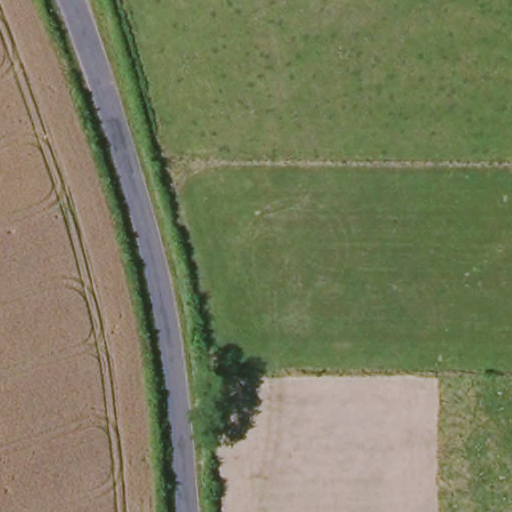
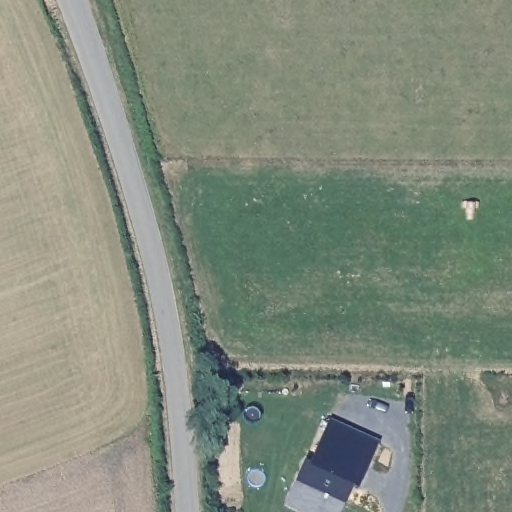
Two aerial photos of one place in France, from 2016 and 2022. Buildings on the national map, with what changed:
new [(379,441),(358,490),(352,486),(340,512),(300,512),(285,505),(305,460),(310,462),(330,418),(379,441)]

